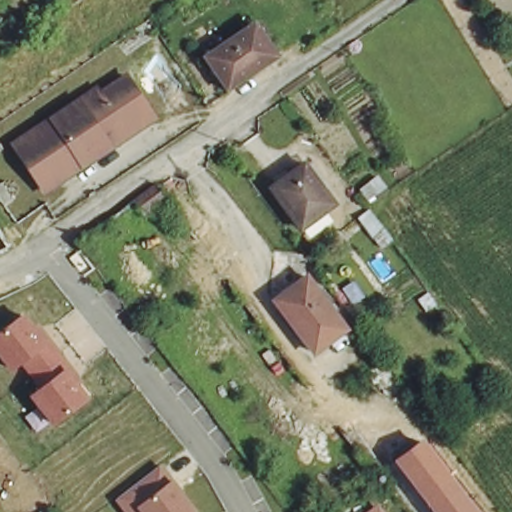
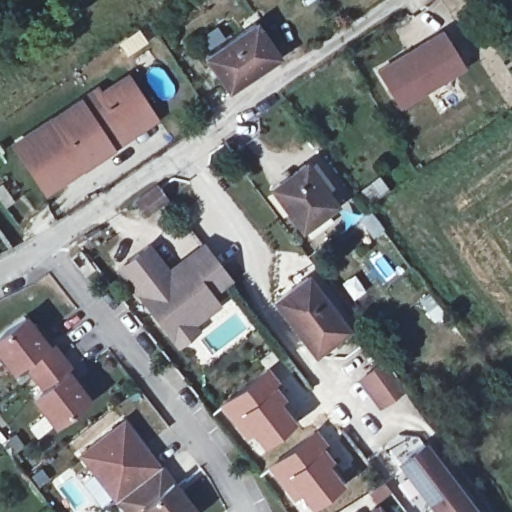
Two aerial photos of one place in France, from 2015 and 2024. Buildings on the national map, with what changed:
unchanged [(256,22),(278,54),(229,86),(207,55),(256,22)]
new [(442,28),(466,68),(398,107),(375,68),(442,28)]
unchanged [(45,188),(14,144),(133,74),(161,120),(45,188)]
unchanged [(306,163),(336,203),(301,228),(272,187),(306,163)]
unchanged [(382,226),(372,234),(360,218),(370,210),(382,226)]
new [(168,266),(204,240),(219,260),(201,275),(205,281),(158,317),(117,267),(148,243),(168,266)]
unchanged [(308,277),(347,328),(315,352),(276,300),(308,277)]
unchanged [(40,388),(22,362),(11,370),(0,357),(0,332),(26,311),(35,325),(40,322),(85,382),(80,386),(89,397),(53,426),(30,396),(40,388)]
new [(384,357),(405,388),(378,407),(356,377),(384,357)]
new [(267,366),(279,380),(275,383),(286,397),(281,401),(295,419),(260,445),(253,437),(248,441),(218,405),(267,366)]
new [(76,453),(123,417),(160,466),(117,499),(76,453)]
new [(317,428),(328,442),(324,445),(334,458),(329,463),(343,481),(307,507),(301,499),(296,500),(293,501),(266,466),(317,428)]
unchanged [(423,438),(463,491),(479,512),(438,512),(398,457),(423,438)]
unchanged [(174,482),(196,510),(193,512),(126,512),(117,499),(160,466),(174,482)]
unchanged [(367,512),(378,504),(384,512),(367,512)]

